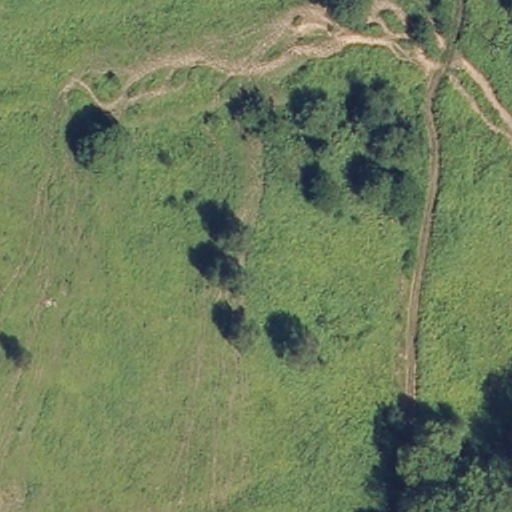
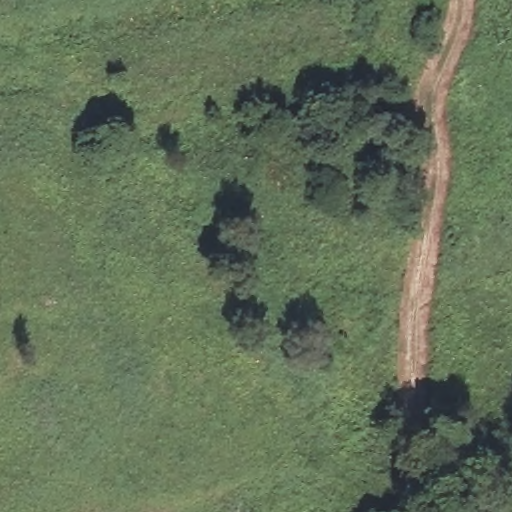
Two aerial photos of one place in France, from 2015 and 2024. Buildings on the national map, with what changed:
[]

